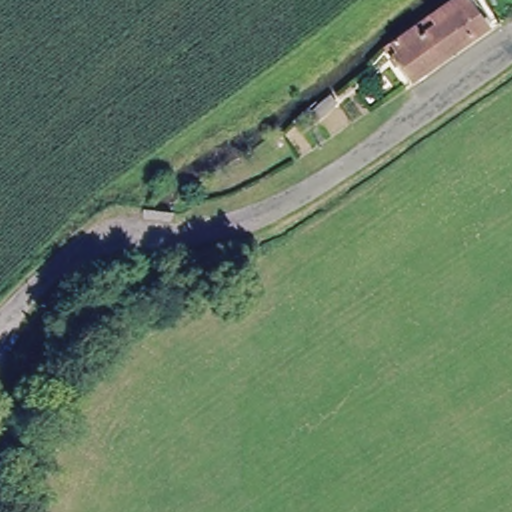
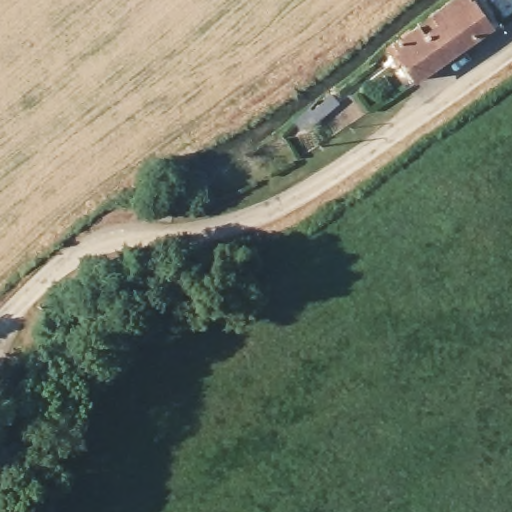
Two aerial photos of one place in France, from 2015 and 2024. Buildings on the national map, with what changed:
unchanged [(395,56),(388,47),(397,40),(400,38),(412,30),(429,18),(456,0),(467,0),(469,3),(472,1),(489,26),(414,78),(398,55),(395,56)]

